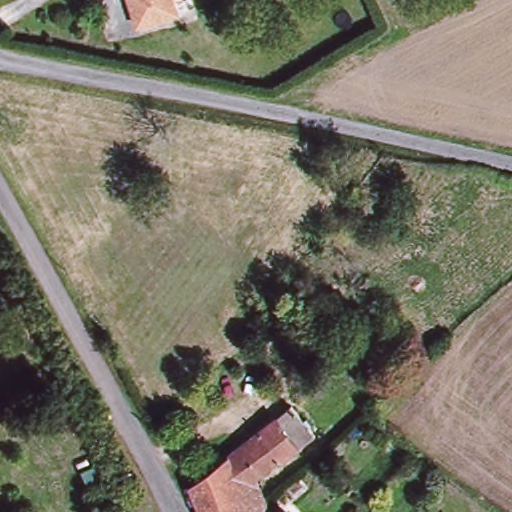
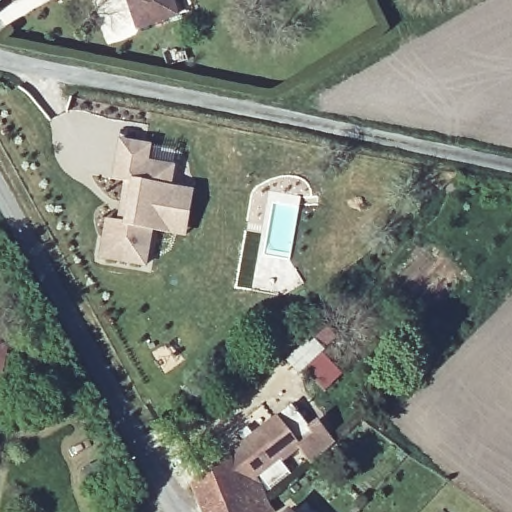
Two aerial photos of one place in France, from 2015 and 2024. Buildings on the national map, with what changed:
unchanged [(130,23),(122,0),(167,0),(170,10),(130,23)]
new [(187,232),(172,229),(153,226),(147,262),(102,254),(109,218),(121,220),(127,177),(115,175),(122,138),(151,143),(148,160),(175,164),(172,185),(179,186),(194,189),(187,232)]
unchanged [(288,411),(312,444),(282,467),(279,464),(251,482),(264,504),(255,512),(251,512),(244,496),(230,457),(288,411)]
unchanged [(396,464),(368,448),(375,438),(402,455),(396,464)]
unchanged [(221,512),(203,512),(191,485),(230,457),(244,496),(221,512)]
unchanged [(244,496),(251,512),(221,512),(244,496)]
unchanged [(264,504),(269,512),(255,512),(264,504)]

